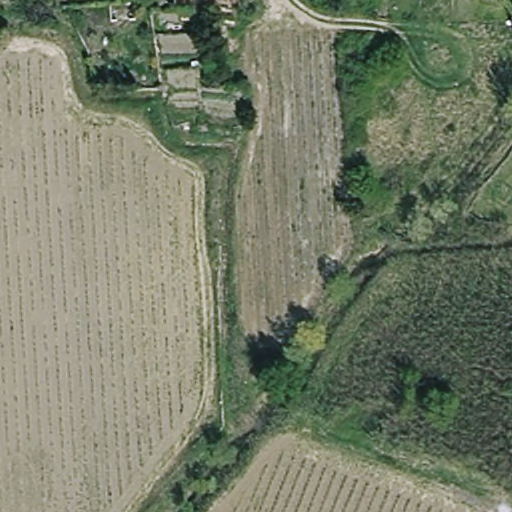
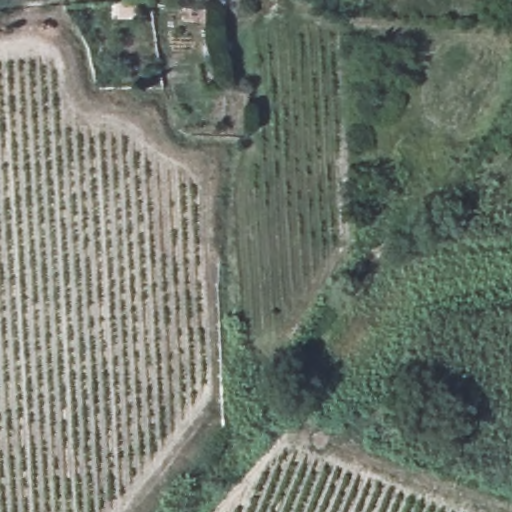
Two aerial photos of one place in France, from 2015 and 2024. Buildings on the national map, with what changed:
unchanged [(136,15),(120,15),(119,2),(136,1),(136,15)]

